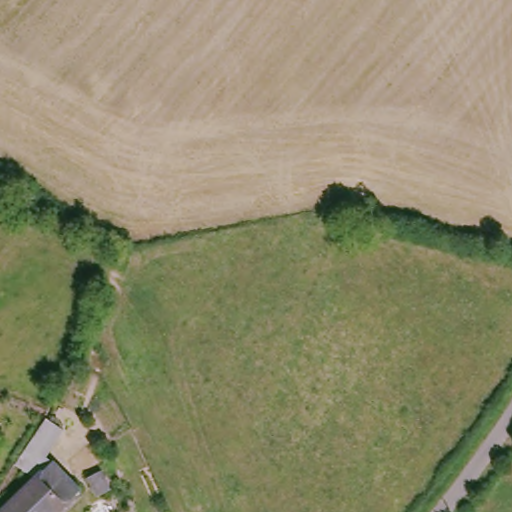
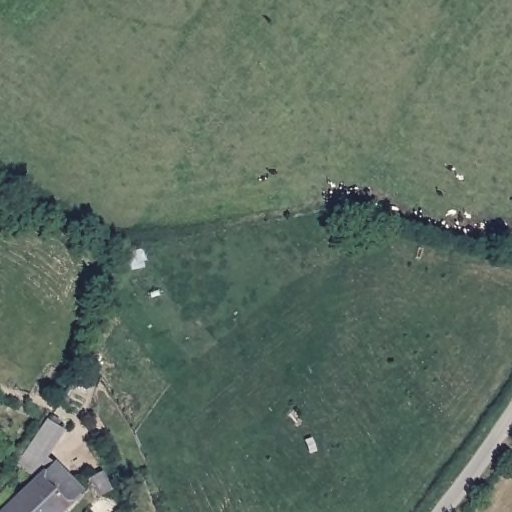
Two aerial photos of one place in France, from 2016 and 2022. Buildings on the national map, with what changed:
unchanged [(53,454),(72,471),(97,459),(114,489),(98,499),(90,489),(67,512),(0,512),(0,510),(31,473),(17,464),(45,412),(68,424),(53,454)]

